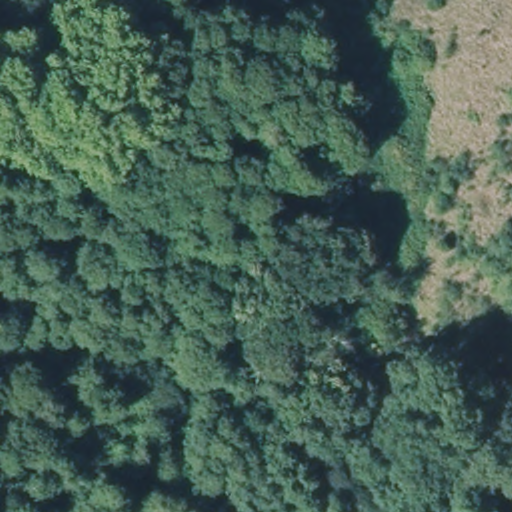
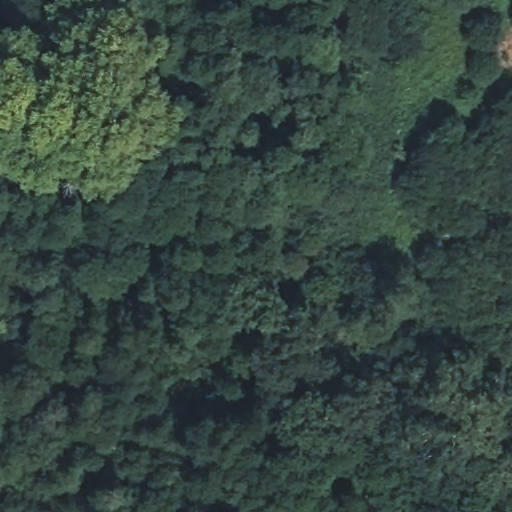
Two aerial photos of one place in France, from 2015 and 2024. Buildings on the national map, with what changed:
[]

